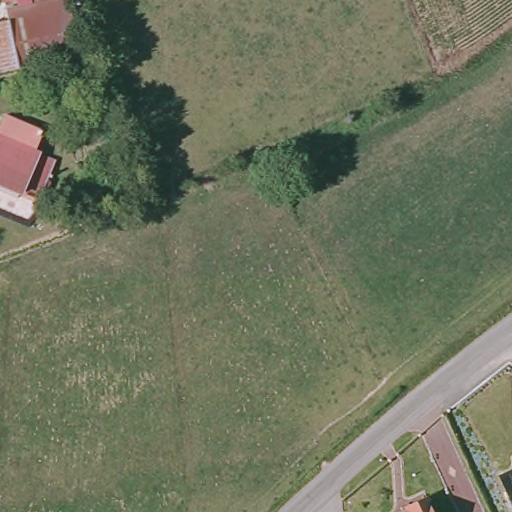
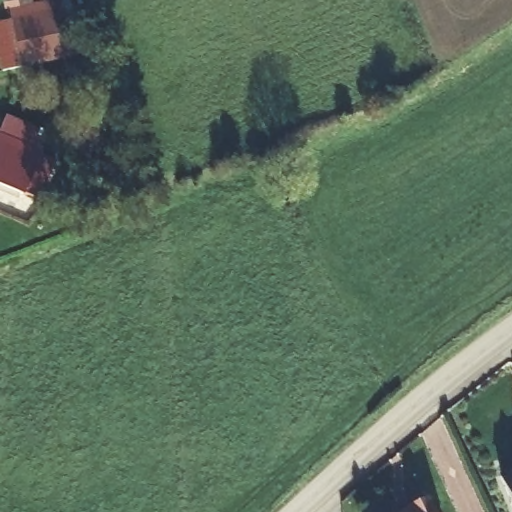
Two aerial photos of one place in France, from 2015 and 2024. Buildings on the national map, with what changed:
unchanged [(0,25),(11,21),(8,10),(20,8),(53,0),(70,0),(82,55),(21,69),(2,73),(0,63),(0,25)]
unchanged [(18,0),(53,0),(20,8),(18,0)]
unchanged [(42,132),(34,152),(57,161),(39,202),(0,185),(0,133),(6,117),(42,132)]
unchanged [(501,475),(512,470),(512,500),(501,475)]
unchanged [(422,501),(427,512),(401,512),(401,511),(422,501)]

